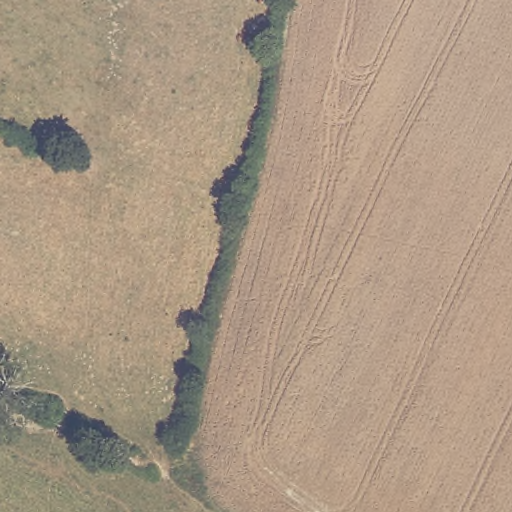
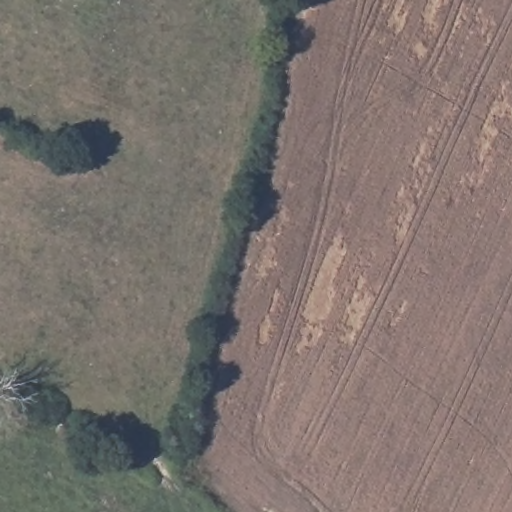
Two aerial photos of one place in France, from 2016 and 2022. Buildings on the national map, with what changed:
[]

